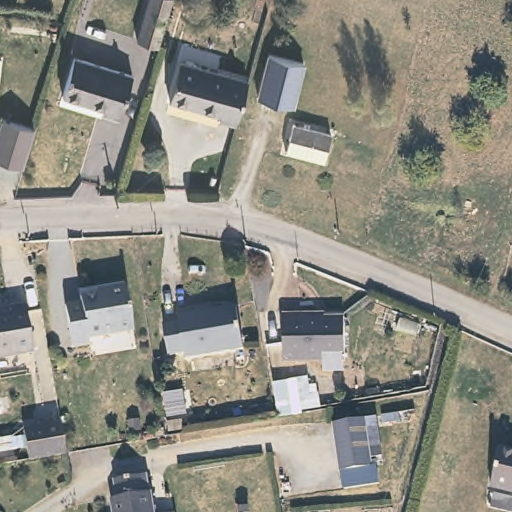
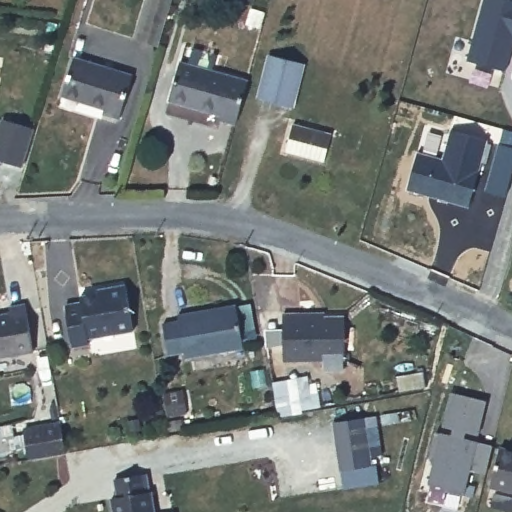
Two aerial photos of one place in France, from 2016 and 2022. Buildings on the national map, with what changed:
unchanged [(158,45),(136,40),(148,0),(171,0),(158,45)]
new [(512,43),(506,70),(468,58),(484,0),(512,0),(512,43)]
unchanged [(303,65),(291,109),(257,100),(269,56),(303,65)]
unchanged [(130,75),(115,120),(99,115),(101,109),(61,97),(73,59),(130,75)]
unchanged [(248,82),(239,115),(235,127),(221,123),(222,119),(171,102),(182,63),(248,82)]
unchanged [(31,130),(20,170),(0,164),(0,123),(0,121),(31,130)]
unchanged [(331,140),(323,166),(285,155),(293,130),(331,140)]
new [(420,152),(444,159),(452,131),(487,140),(469,205),(407,190),(420,152)]
unchanged [(105,295),(104,287),(125,283),(134,330),(86,340),(87,346),(69,350),(62,308),(79,305),(78,300),(105,295)]
unchanged [(8,313),(6,305),(25,302),(34,350),(0,357),(0,314),(8,313)]
unchanged [(236,304),(245,350),(186,362),(185,356),(170,358),(163,325),(178,322),(177,315),(236,304)]
unchanged [(346,358),(283,358),(283,313),(299,313),(326,312),(326,318),(346,318),(346,358)]
new [(436,455),(431,454),(438,427),(453,430),(455,423),(444,420),(451,388),(487,396),(479,429),(465,425),(464,433),(492,440),(485,467),(472,465),(466,490),(430,481),(436,455)]
unchanged [(361,415),(369,462),(339,466),(332,420),(361,415)]
unchanged [(59,427),(65,456),(26,463),(21,434),(59,427)]
unchanged [(512,491),(490,486),(499,446),(512,449),(512,491)]
unchanged [(156,512),(114,512),(111,497),(119,495),(116,478),(149,473),(156,512)]

